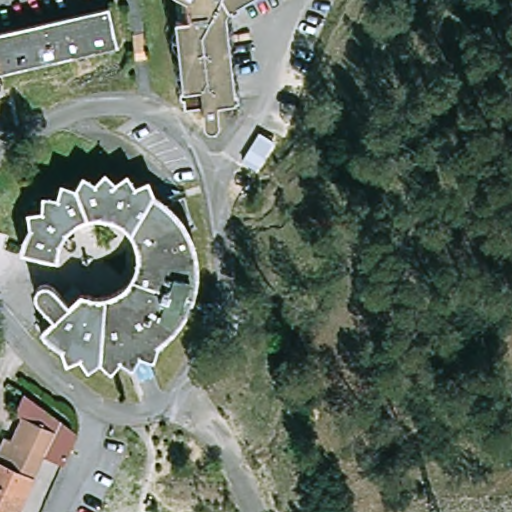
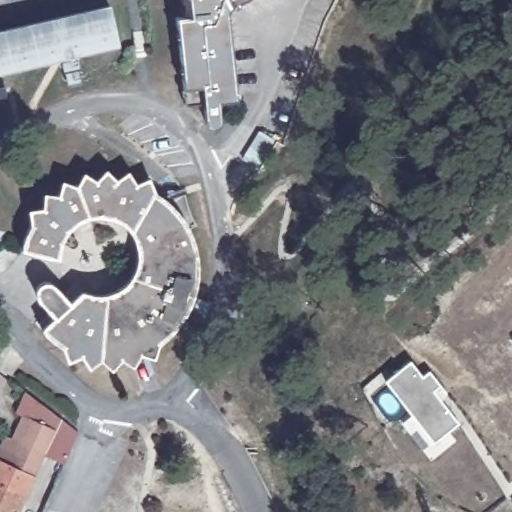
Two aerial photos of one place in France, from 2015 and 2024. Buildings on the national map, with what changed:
unchanged [(231,16),(238,98),(218,101),(220,117),(218,120),(214,122),(209,122),(206,119),(205,102),(189,103),(181,20),(188,19),(186,0),(247,0),(236,5),(231,16)]
unchanged [(108,7),(116,42),(0,68),(0,32),(108,7)]
unchanged [(42,298),(40,289),(42,282),(52,281),(61,290),(75,302),(86,291),(102,295),(118,290),(134,281),(142,267),(143,250),(138,231),(125,217),(109,213),(91,215),(77,223),(65,237),(63,247),(60,255),(26,248),(36,221),(33,210),(65,194),(66,181),(81,184),(87,175),(99,182),(111,170),(119,180),(132,173),(138,182),(153,177),(158,194),(176,206),(192,227),(201,272),(197,295),(184,314),(162,340),(159,359),(142,350),(139,366),(126,356),(116,368),(106,357),(94,367),(85,353),(73,362),(68,347),(44,329),(59,316),(42,298)]
new [(409,360),(420,375),(427,370),(446,394),(440,400),(457,422),(432,442),(385,379),(409,360)]
unchanged [(5,507),(0,505),(0,457),(11,435),(15,437),(26,414),(23,413),(33,391),(83,429),(69,462),(50,452),(25,506),(22,512),(3,512),(5,507)]

